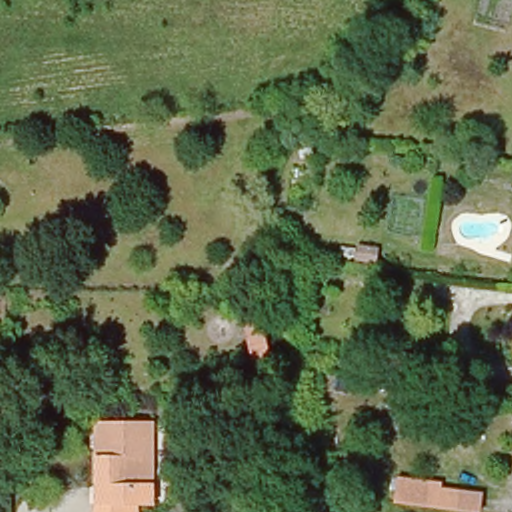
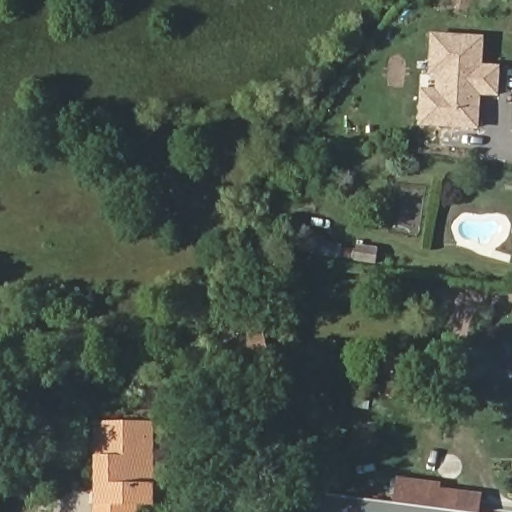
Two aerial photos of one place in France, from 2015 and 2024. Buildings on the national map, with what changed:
new [(499,64),(499,95),(481,95),(479,128),(419,125),(421,89),(436,90),(437,73),(429,73),(429,34),(484,36),(483,63),(499,64)]
unchanged [(382,266),(362,263),(364,248),(384,250),(382,266)]
unchanged [(268,336),(250,341),(244,312),(262,308),(268,336)]
unchanged [(97,508),(98,491),(98,446),(99,410),(108,410),(150,411),(149,492),(134,492),(134,508),(97,508)]
unchanged [(0,469),(0,448),(14,448),(14,457),(14,468),(8,468),(0,469)]
unchanged [(462,512),(394,502),(398,477),(443,482),(442,487),(482,492),(481,512),(462,512)]

